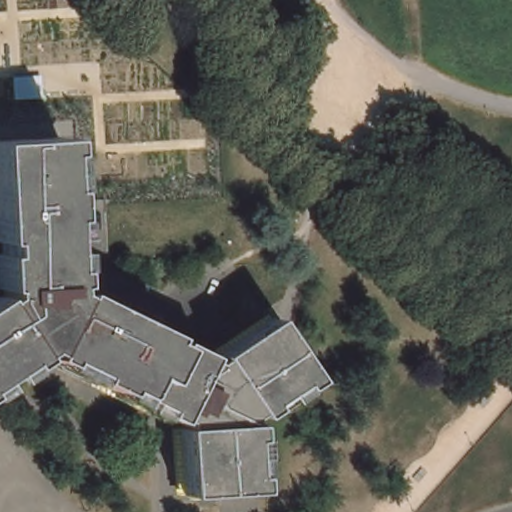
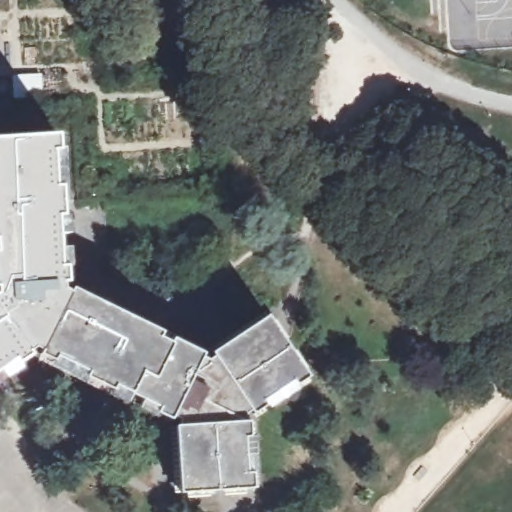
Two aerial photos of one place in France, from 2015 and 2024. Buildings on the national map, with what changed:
unchanged [(71,287),(173,337),(204,352),(214,352),(268,312),(310,378),(250,420),(256,487),(178,495),(175,425),(172,417),(128,397),(33,360),(0,380),(0,139),(58,136),(71,287)]

